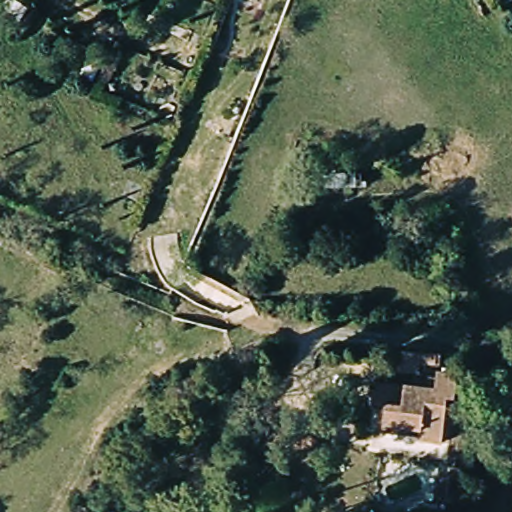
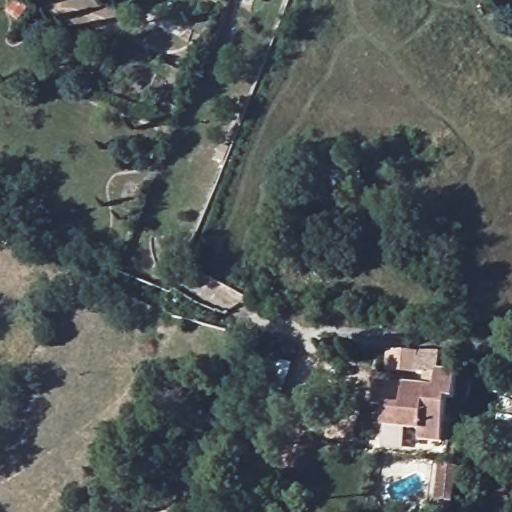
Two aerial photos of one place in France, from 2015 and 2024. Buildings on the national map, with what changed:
unchanged [(332,189),(331,172),(364,173),(363,188),(332,189)]
unchanged [(437,364),(421,364),(420,372),(399,372),(398,381),(389,381),(391,352),(437,353),(437,364)]
unchanged [(384,404),(385,389),(442,392),(444,373),(462,374),(461,399),(448,398),(447,411),(392,404),(384,404)]
unchanged [(446,444),(421,442),(422,430),(391,429),(392,404),(447,411),(446,444)]
unchanged [(462,468),(455,503),(439,501),(443,466),(462,468)]

